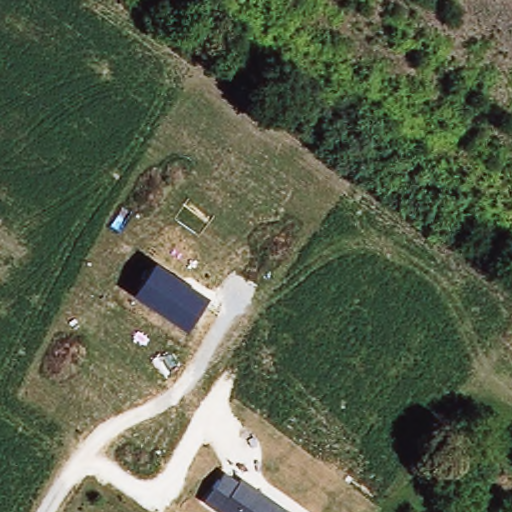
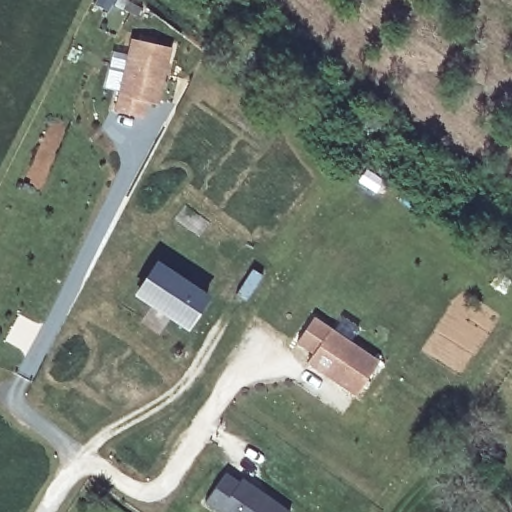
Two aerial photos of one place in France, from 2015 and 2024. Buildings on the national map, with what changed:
new [(173,50),(160,105),(148,103),(145,120),(113,114),(129,40),(173,50)]
unchanged [(211,296),(191,330),(135,295),(156,262),(211,296)]
new [(381,361),(358,397),(308,365),(315,354),(296,343),(313,317),(381,361)]
unchanged [(217,512),(205,503),(227,472),(286,512),(217,512)]

